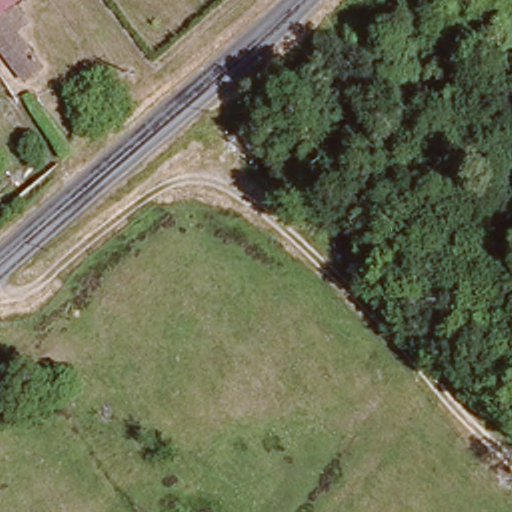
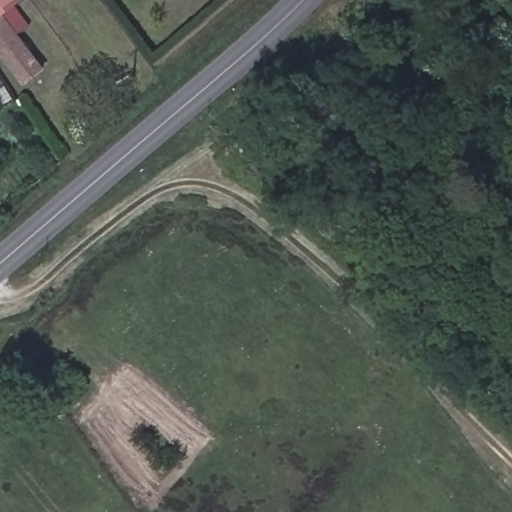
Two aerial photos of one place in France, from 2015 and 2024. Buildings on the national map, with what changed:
unchanged [(6,0),(0,5),(0,0),(6,0)]
unchanged [(9,12),(51,64),(33,79),(0,41),(0,19),(9,12)]

